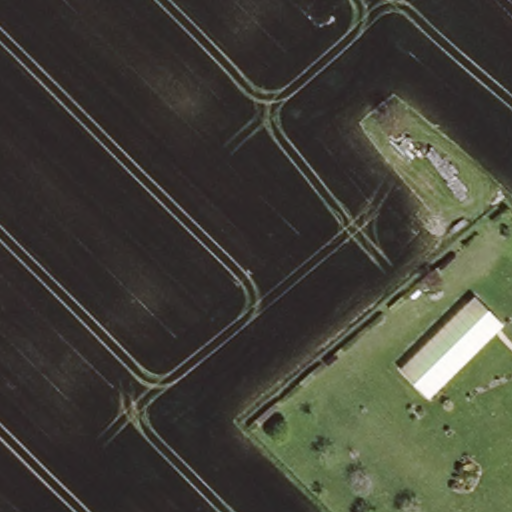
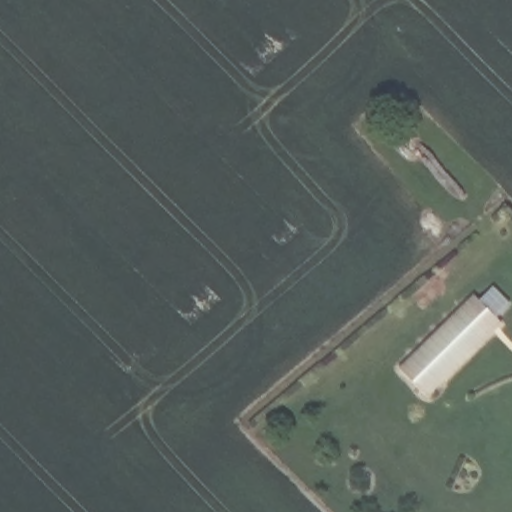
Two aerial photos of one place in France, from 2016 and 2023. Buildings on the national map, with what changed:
unchanged [(400,368),(475,295),(503,324),(429,396),(400,368)]

